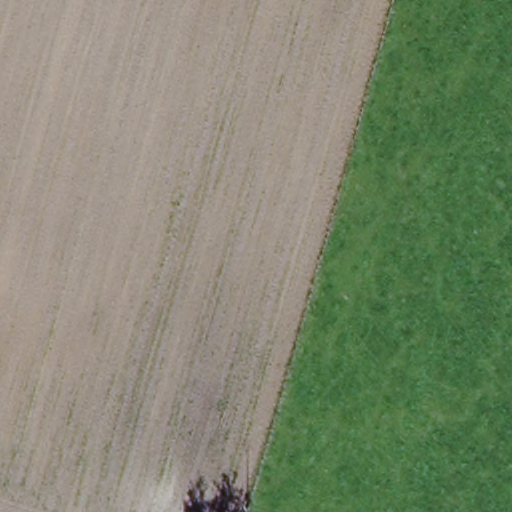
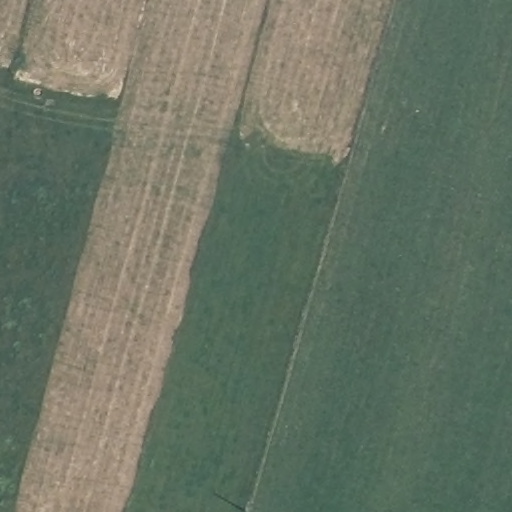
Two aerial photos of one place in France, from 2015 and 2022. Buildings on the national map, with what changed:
[]

